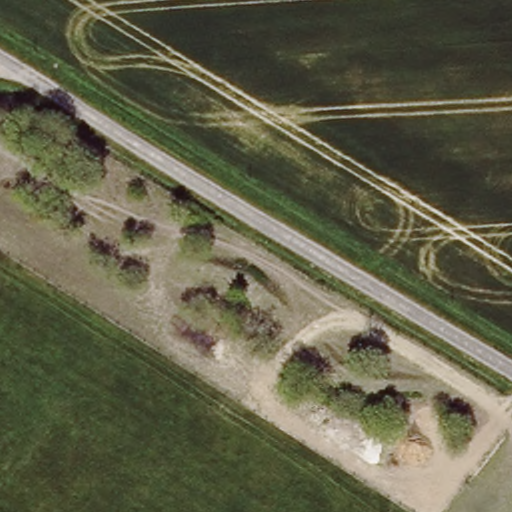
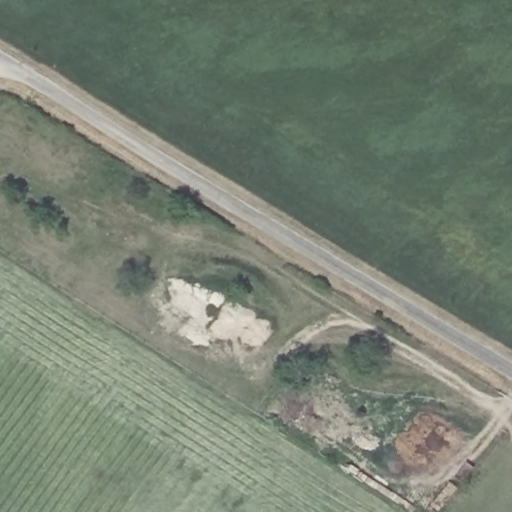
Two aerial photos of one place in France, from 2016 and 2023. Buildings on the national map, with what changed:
[]

